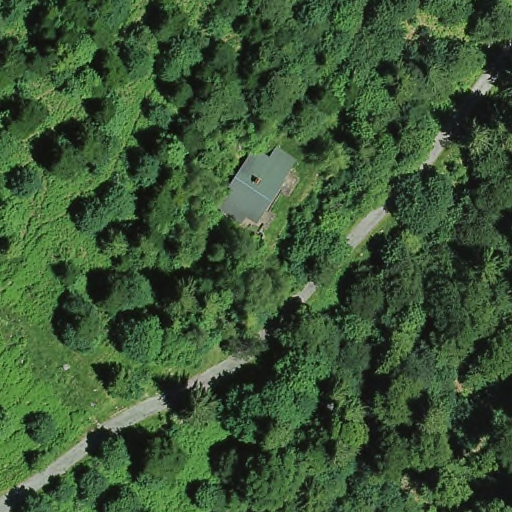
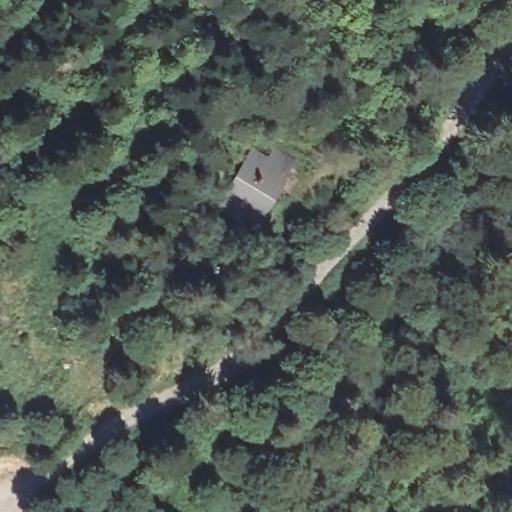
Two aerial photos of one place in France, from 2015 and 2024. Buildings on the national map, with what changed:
unchanged [(251,222),(221,198),(258,154),(273,167),(277,162),(291,174),(251,222)]

